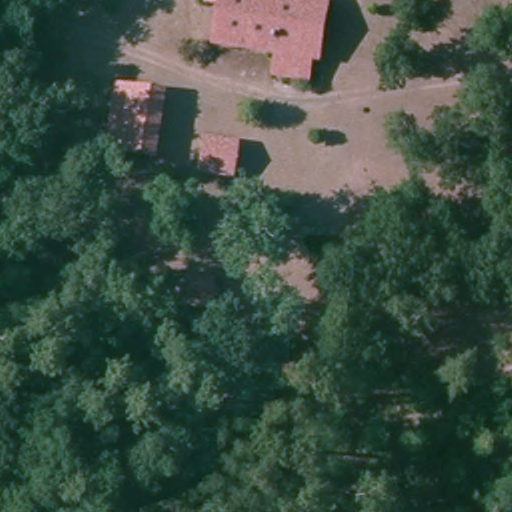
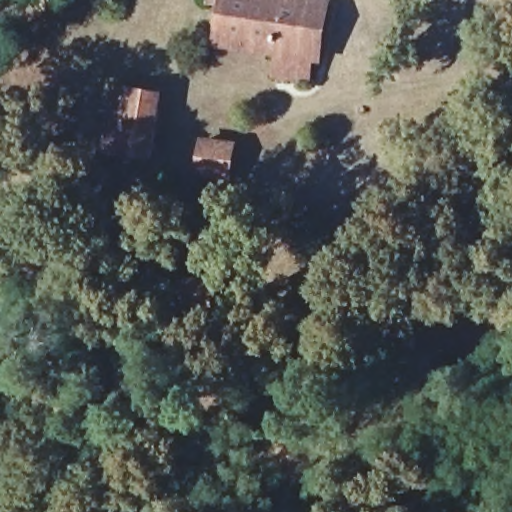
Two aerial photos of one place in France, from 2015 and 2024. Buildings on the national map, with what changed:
unchanged [(303,58),(302,81),(269,81),(270,57),(219,51),(223,0),(323,0),(323,13),(323,58),(303,58)]
unchanged [(115,94),(146,99),(140,160),(110,155),(115,94)]
unchanged [(207,150),(227,152),(226,174),(206,172),(207,150)]

